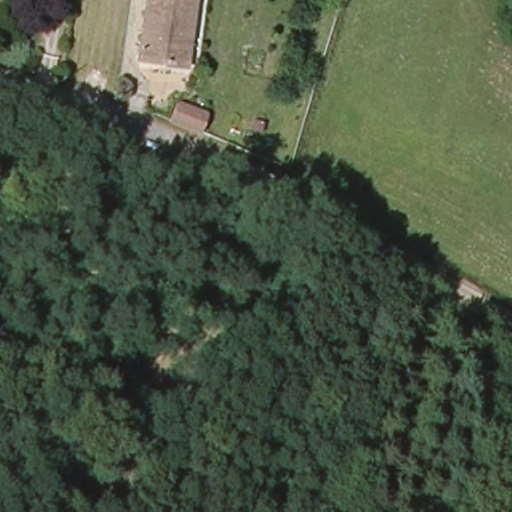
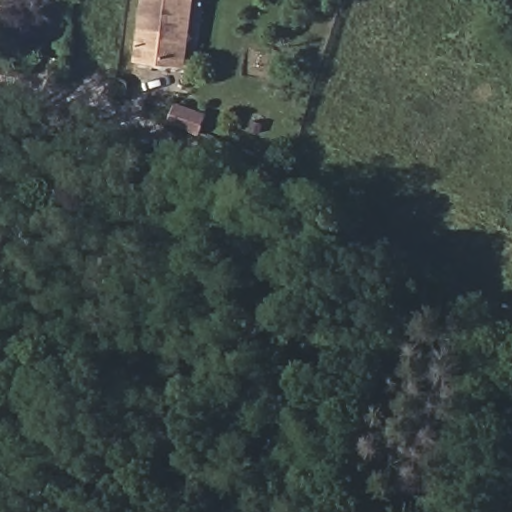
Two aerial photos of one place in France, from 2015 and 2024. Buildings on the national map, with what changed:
unchanged [(142,0),(189,0),(183,62),(135,59),(142,0)]
unchanged [(169,123),(173,104),(206,115),(201,133),(169,123)]

